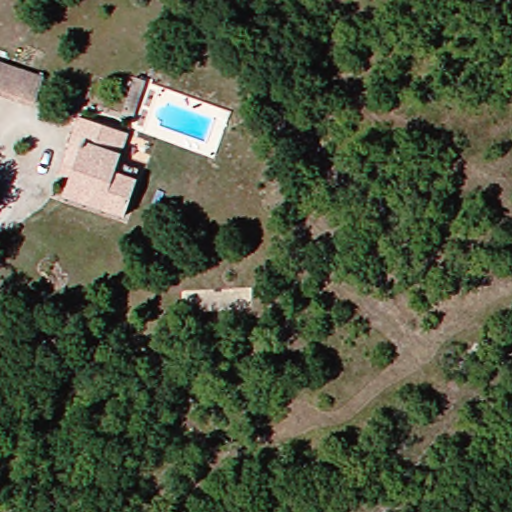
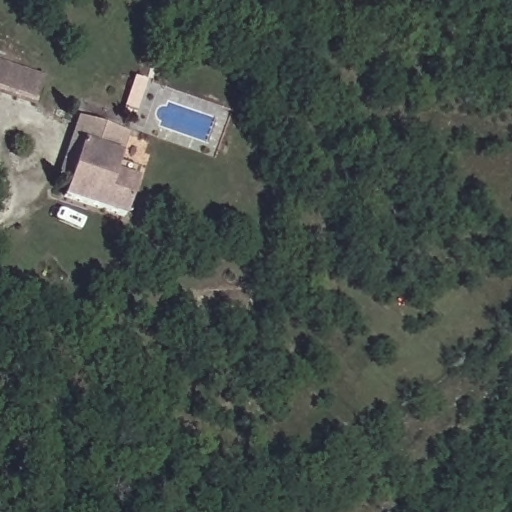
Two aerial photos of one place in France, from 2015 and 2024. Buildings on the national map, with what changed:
unchanged [(42,25),(30,20),(37,0),(52,0),(42,25)]
unchanged [(23,32),(18,49),(27,53),(22,70),(40,76),(30,111),(0,103),(0,26),(23,32)]
unchanged [(136,120),(127,115),(137,76),(148,79),(136,120)]
unchanged [(77,178),(66,175),(85,118),(135,135),(128,155),(125,166),(146,170),(143,181),(129,216),(69,195),(77,178)]

